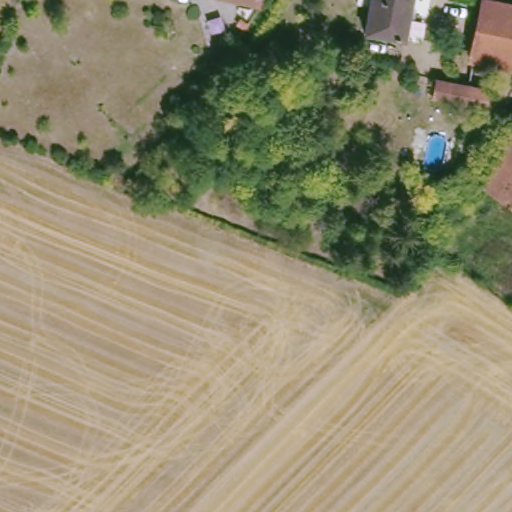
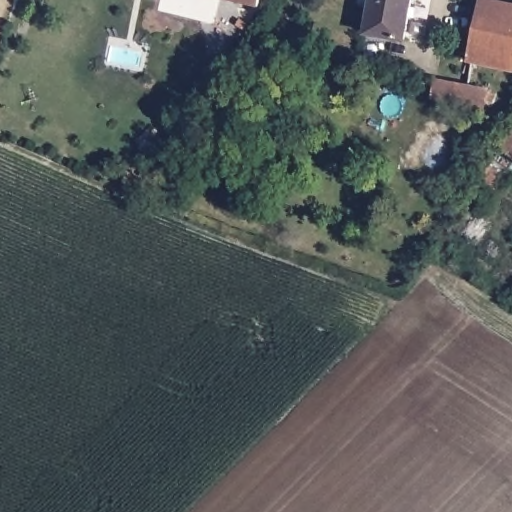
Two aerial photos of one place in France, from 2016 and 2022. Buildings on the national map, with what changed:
unchanged [(246,0),(256,0),(255,2),(246,0)]
unchanged [(359,29),(366,0),(405,0),(397,37),(359,29)]
unchanged [(483,0),(489,0),(512,4),(512,67),(471,59),(483,0)]
unchanged [(479,105),(430,94),(433,80),(482,91),(479,105)]
unchanged [(512,121),(512,208),(473,180),(512,121)]

